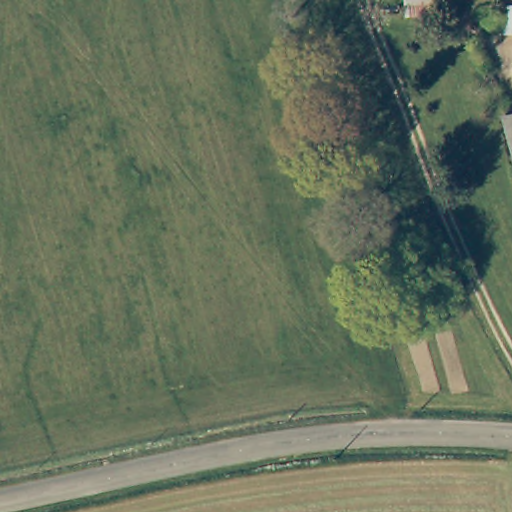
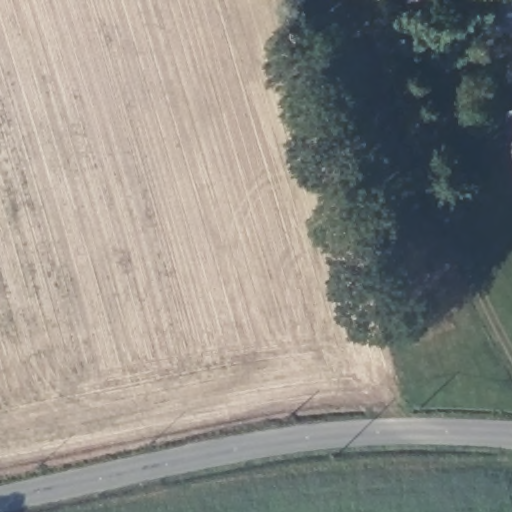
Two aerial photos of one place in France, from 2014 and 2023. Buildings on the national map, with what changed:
unchanged [(405,8),(405,0),(439,0),(440,6),(405,8)]
unchanged [(496,3),(496,0),(512,0),(512,29),(494,27),(496,3)]
unchanged [(512,106),(512,148),(502,109),(512,106)]

